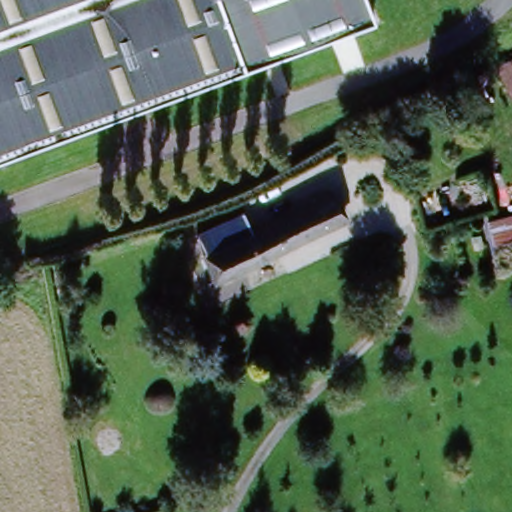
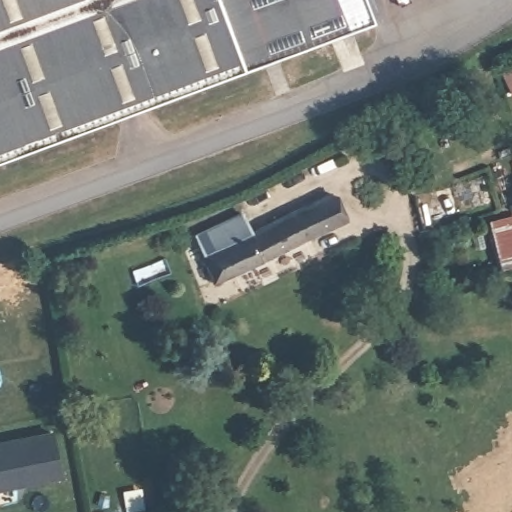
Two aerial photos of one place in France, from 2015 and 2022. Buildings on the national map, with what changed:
unchanged [(247,61),(242,63),(0,151),(0,0),(224,0),(247,61)]
unchanged [(374,24),(247,61),(224,0),(368,0),(374,24)]
unchanged [(195,239),(245,215),(251,227),(335,193),(348,224),(215,286),(195,239)]
unchanged [(487,223),(512,217),(512,270),(499,273),(487,223)]
new [(0,495),(0,449),(54,438),(63,482),(0,495)]

